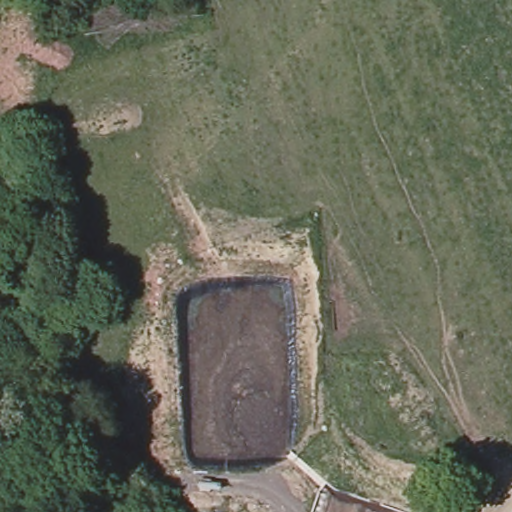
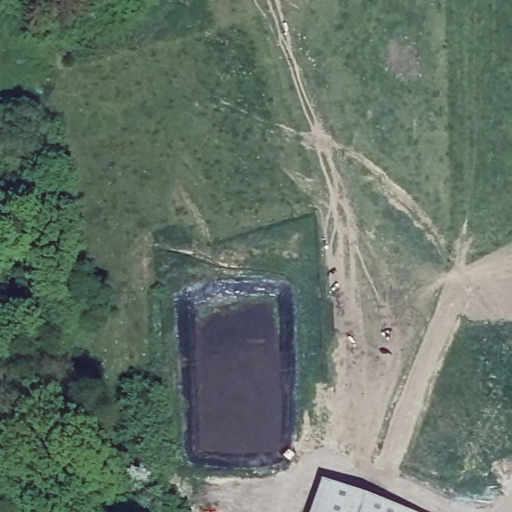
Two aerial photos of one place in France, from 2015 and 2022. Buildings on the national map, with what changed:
new [(322,482),(412,512),(312,512),(322,482)]

